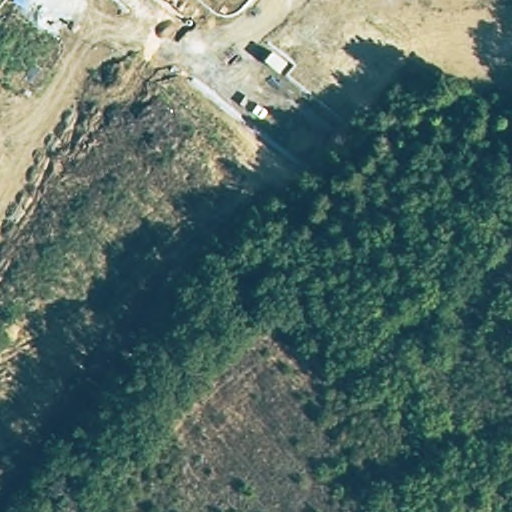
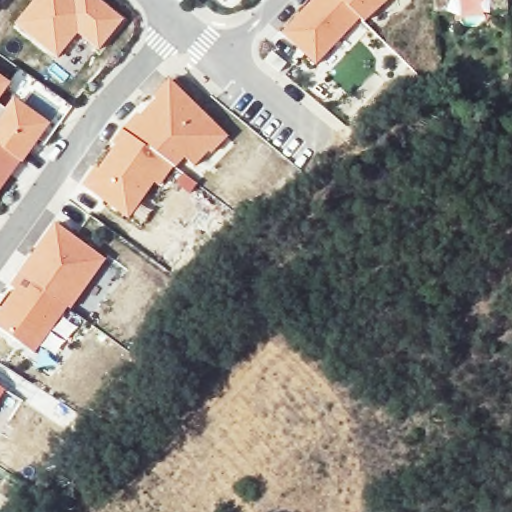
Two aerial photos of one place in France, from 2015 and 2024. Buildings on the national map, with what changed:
new [(37,0),(101,0),(124,19),(102,46),(80,29),(57,57),(17,24),(37,0)]
new [(360,19),(316,65),(281,32),(312,0),(340,0),(360,19)]
new [(360,19),(340,0),(389,0),(365,22),(360,19)]
new [(0,92),(0,78),(7,82),(0,92)]
new [(211,154),(208,151),(193,167),(185,159),(176,168),(173,166),(120,130),(136,114),(139,117),(155,101),(150,96),(168,79),(227,136),(211,154)]
new [(0,105),(7,110),(14,100),(43,121),(28,144),(30,145),(18,160),(0,147),(0,105)]
new [(81,185),(95,166),(98,169),(115,146),(111,143),(120,130),(173,166),(159,185),(154,182),(127,219),(81,185)]
new [(0,147),(18,160),(0,187),(0,147)]
new [(105,258),(70,309),(66,306),(20,273),(55,223),(105,258)]
new [(33,355),(0,330),(0,309),(13,291),(8,287),(20,273),(66,306),(33,355)]
new [(0,393),(0,387),(2,389),(0,393)]

